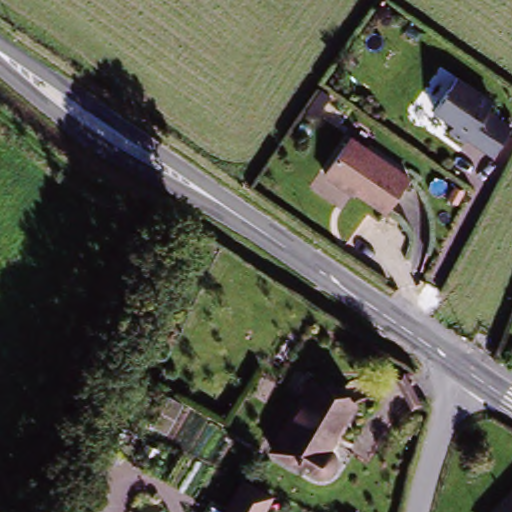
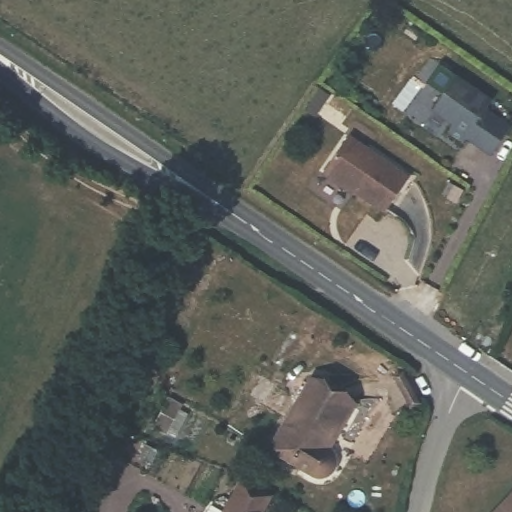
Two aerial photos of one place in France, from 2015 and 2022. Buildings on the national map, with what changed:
unchanged [(456,77),(492,101),(485,110),(510,127),(492,154),(467,137),(463,141),(448,131),(454,124),(433,110),(456,77)]
unchanged [(352,136),(410,177),(387,211),(348,184),(346,187),(326,174),(352,136)]
unchanged [(117,337),(130,342),(112,378),(99,372),(117,337)]
unchanged [(358,398),(336,445),(320,473),(275,447),(315,376),(358,398)]
unchanged [(111,456),(88,512),(80,512),(62,504),(87,447),(111,456)]
unchanged [(275,497),(268,512),(232,512),(248,482),(275,497)]
unchanged [(512,502),(512,512),(502,512),(512,502)]

